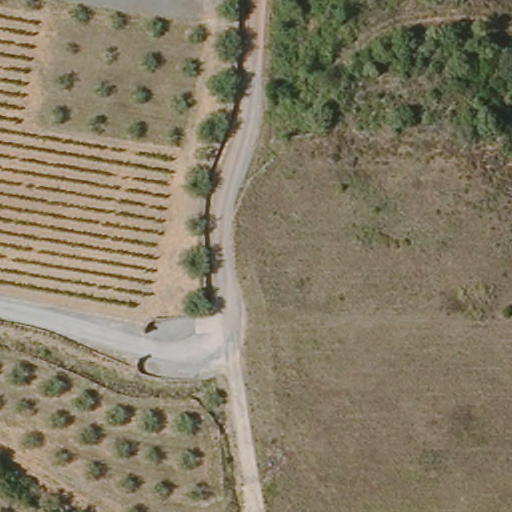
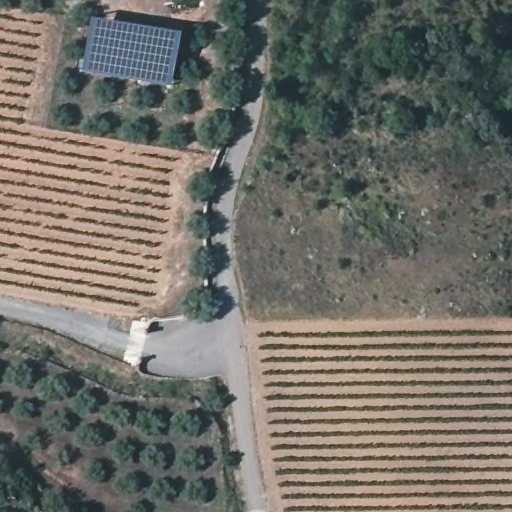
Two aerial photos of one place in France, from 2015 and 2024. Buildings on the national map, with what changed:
new [(88,16),(178,31),(170,86),(96,75),(77,71),(88,16)]

